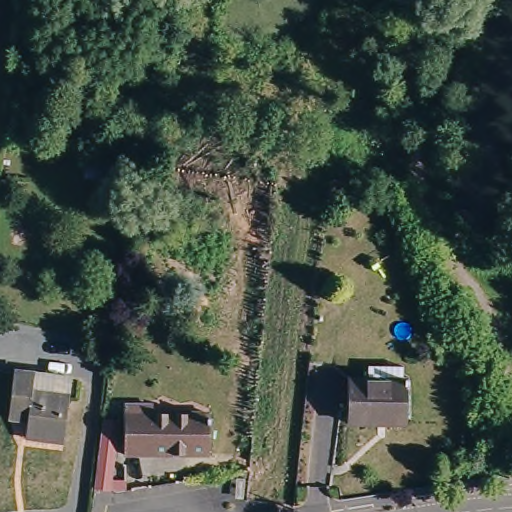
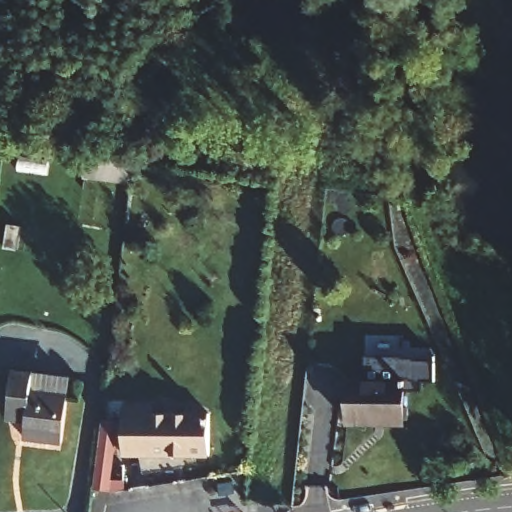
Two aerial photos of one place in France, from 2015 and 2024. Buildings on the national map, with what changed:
unchanged [(129,185),(82,178),(84,156),(132,164),(129,185)]
unchanged [(65,437),(28,434),(30,416),(10,413),(16,369),(72,375),(65,437)]
unchanged [(402,426),(351,426),(351,382),(401,381),(402,426)]
unchanged [(212,449),(125,450),(125,402),(152,401),(152,408),(212,407),(212,449)]
unchanged [(115,427),(106,491),(88,494),(97,424),(115,427)]

